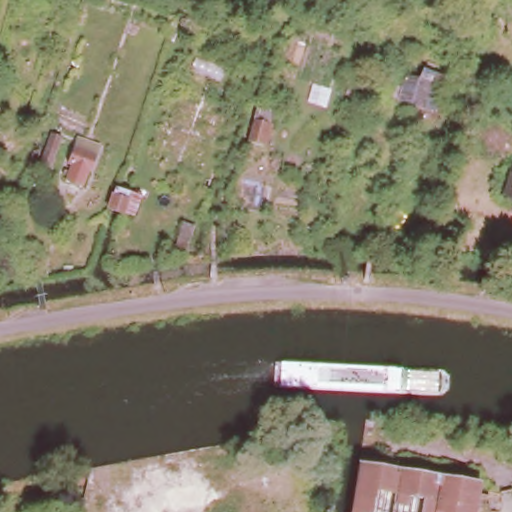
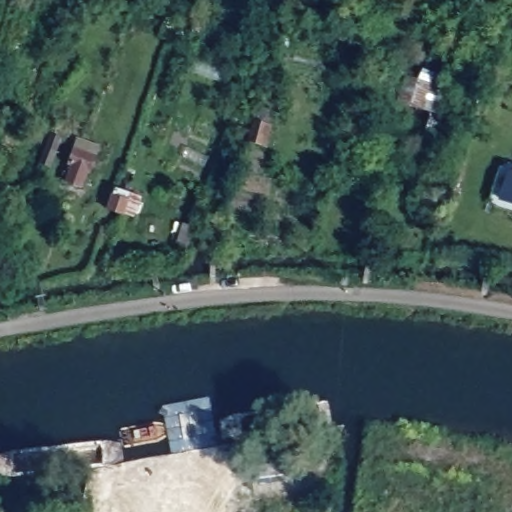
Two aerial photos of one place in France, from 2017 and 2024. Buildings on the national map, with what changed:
unchanged [(423,84),(425,81),(428,69),(434,71),(439,72),(435,87),(423,84)]
unchanged [(417,107),(393,99),(400,79),(423,86),(417,107)]
unchanged [(271,113),(273,117),(263,147),(248,142),(259,110),(271,113)]
unchanged [(67,182),(72,166),(69,165),(76,142),(98,149),(91,172),(88,172),(84,186),(67,182)]
unchanged [(499,202),(509,170),(512,170),(512,207),(499,202)]
unchanged [(113,212),(105,210),(111,191),(117,192),(126,194),(135,197),(130,216),(121,214),(113,212)]
demolished [(475,512),(351,512),(358,467),(478,488),(475,512)]

